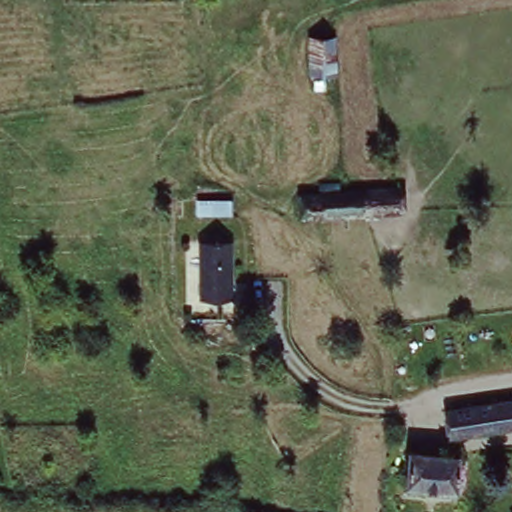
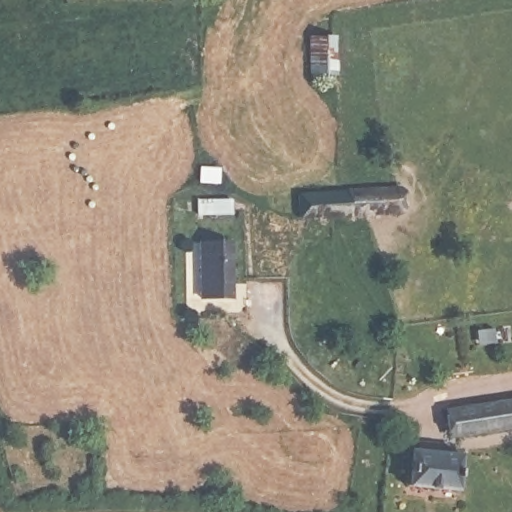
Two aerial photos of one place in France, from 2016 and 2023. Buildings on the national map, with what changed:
unchanged [(335,32),(333,70),(311,71),(310,32),(335,32)]
unchanged [(403,190),(403,212),(301,216),(301,193),(403,190)]
unchanged [(233,215),(199,214),(199,200),(233,201),(233,215)]
unchanged [(201,298),(201,243),(231,244),(231,299),(201,298)]
unchanged [(512,421),(451,429),(448,406),(512,397),(512,421)]
unchanged [(456,490),(406,485),(410,450),(417,451),(418,442),(436,445),(436,453),(460,455),(456,490)]

